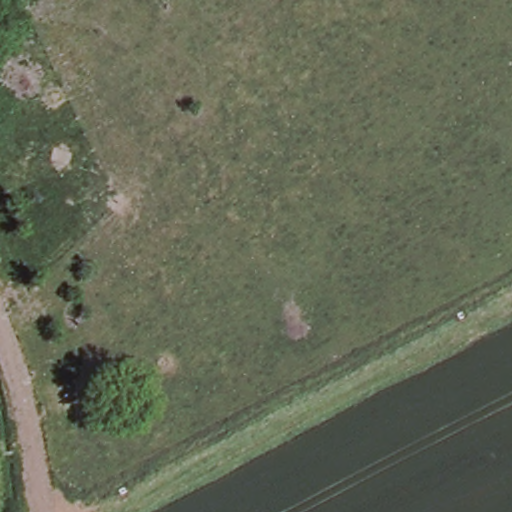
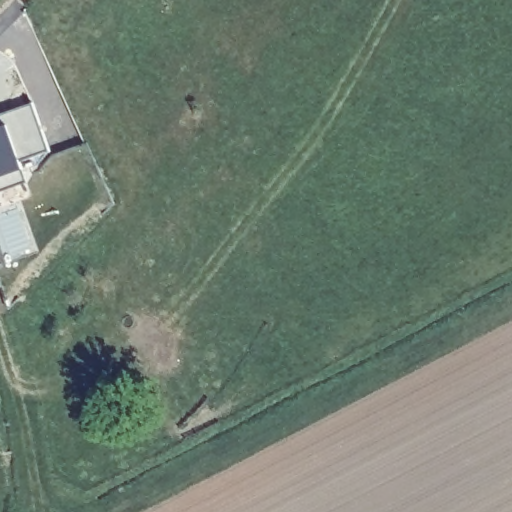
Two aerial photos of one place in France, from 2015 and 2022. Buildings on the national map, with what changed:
new [(48,150),(22,159),(25,169),(28,182),(0,193),(0,114),(32,103),(48,150)]

